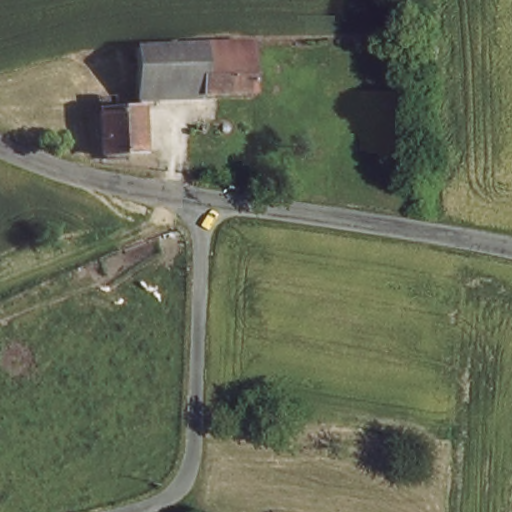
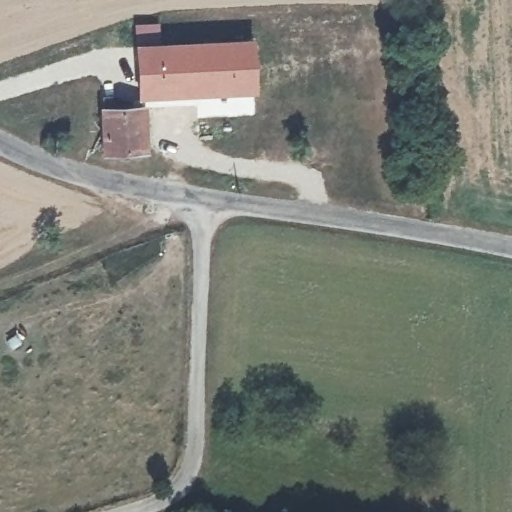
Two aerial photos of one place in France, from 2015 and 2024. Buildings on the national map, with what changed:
unchanged [(256,95),(203,96),(204,47),(255,45),(256,95)]
unchanged [(143,96),(142,48),(204,47),(203,96),(143,96)]
unchanged [(103,110),(147,112),(145,136),(144,156),(103,154),(103,134),(103,110)]

